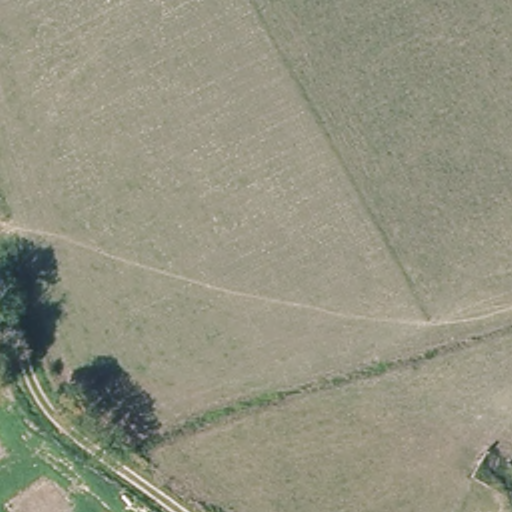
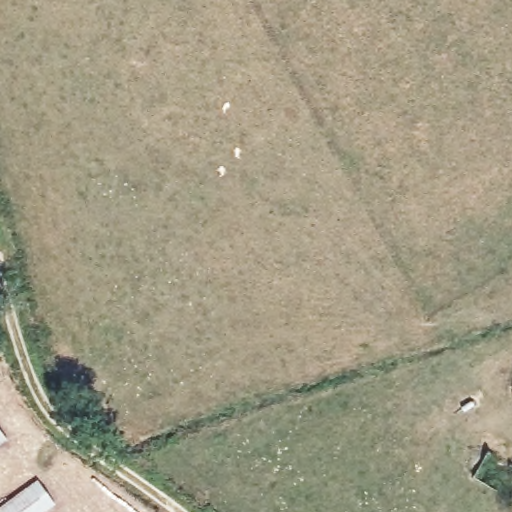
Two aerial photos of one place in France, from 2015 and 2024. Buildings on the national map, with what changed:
new [(37,478),(55,504),(43,512),(0,512),(0,505),(37,478)]

